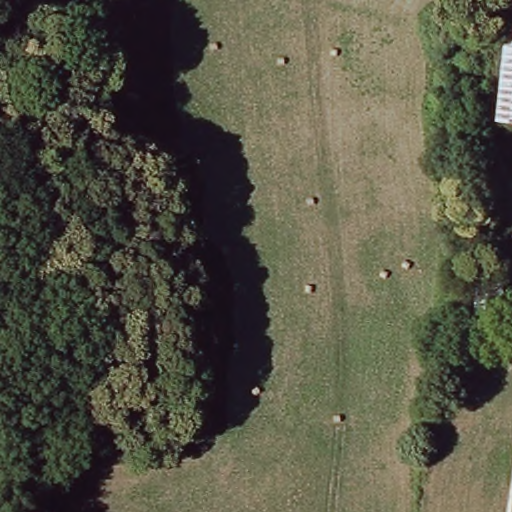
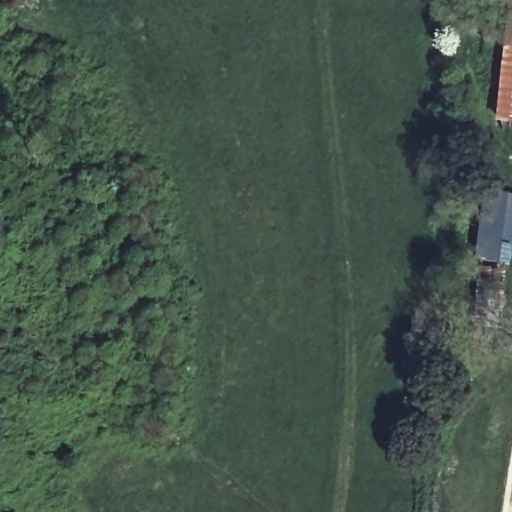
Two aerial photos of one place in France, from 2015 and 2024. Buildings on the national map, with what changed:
unchanged [(512,20),(512,124),(502,123),(512,20)]
new [(497,249),(496,256),(480,254),(488,195),(498,197),(498,192),(512,194),(512,251),(497,249)]
unchanged [(501,330),(475,327),(477,268),(505,270),(501,330)]

